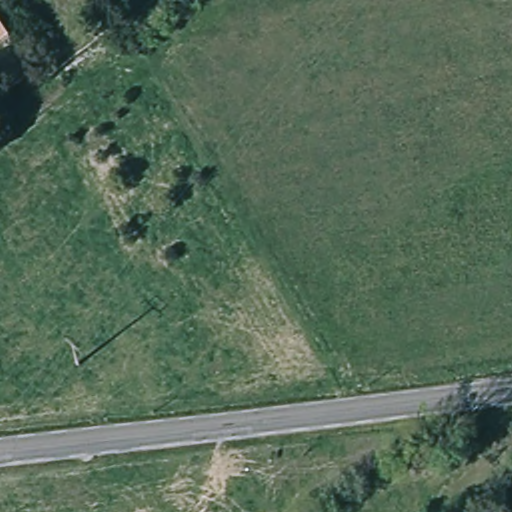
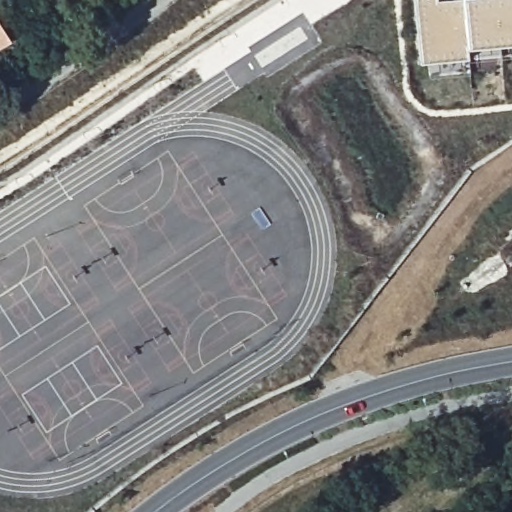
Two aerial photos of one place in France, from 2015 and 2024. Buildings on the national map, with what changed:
new [(468,45),(468,58),(421,62),(414,0),(512,0),(512,40),(468,45)]
unchanged [(0,55),(0,23),(14,44),(0,55)]

